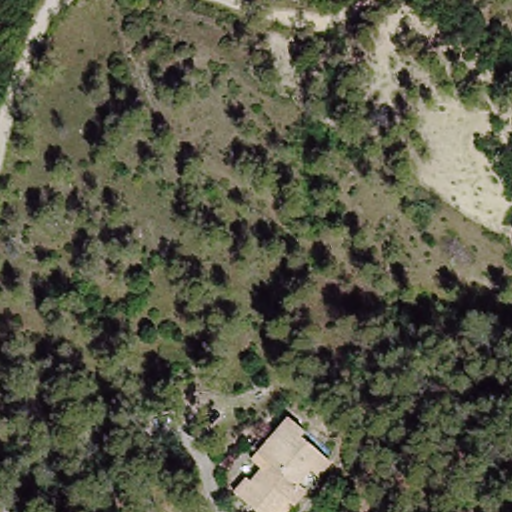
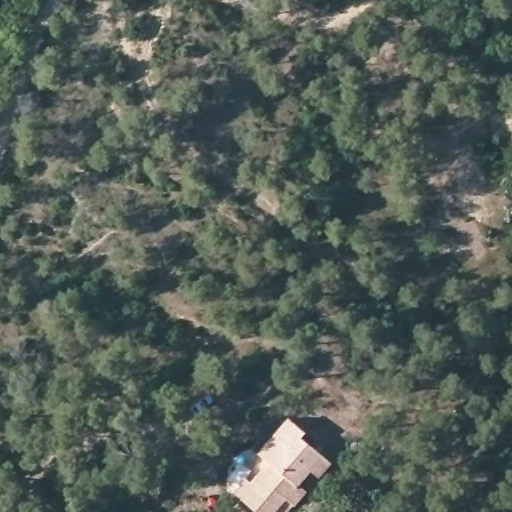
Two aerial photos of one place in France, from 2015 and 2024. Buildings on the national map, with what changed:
unchanged [(237,492),(233,488),(245,474),(249,477),(262,464),(253,454),(259,447),(270,436),(264,431),(272,421),(279,425),(288,413),(309,431),(305,437),(329,460),(316,474),(310,468),(295,481),(304,488),(291,502),(281,512),(250,512),(253,509),(237,492)]

